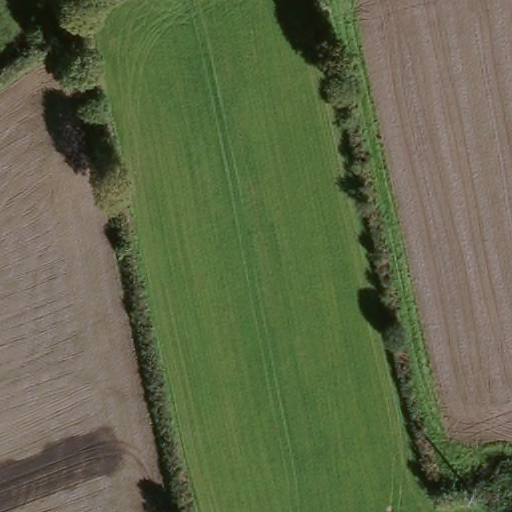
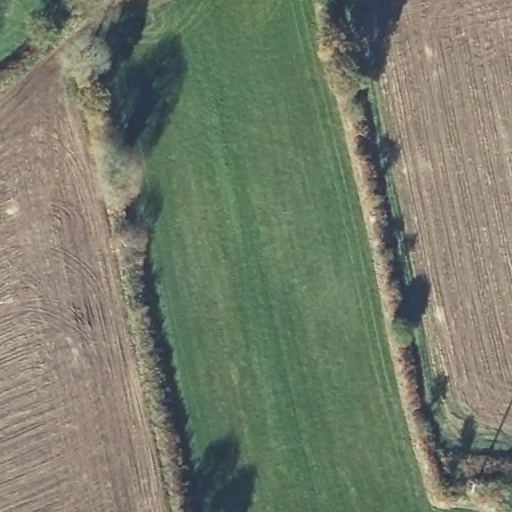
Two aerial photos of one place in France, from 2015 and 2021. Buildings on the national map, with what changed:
[]

